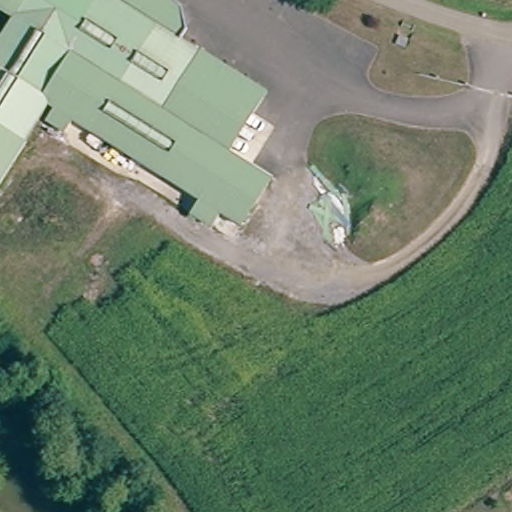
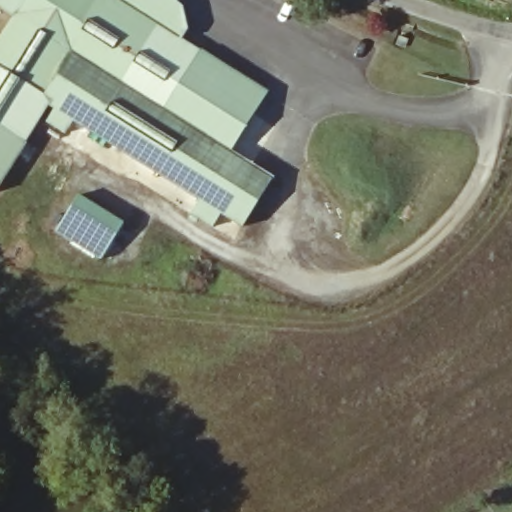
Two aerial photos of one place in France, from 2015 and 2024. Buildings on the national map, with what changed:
unchanged [(0,9),(0,0),(119,0),(166,29),(196,46),(261,84),(226,141),(270,167),(234,227),(189,200),(196,187),(51,103),(0,190),(0,50),(18,20),(0,9)]
unchanged [(166,29),(119,0),(168,0),(173,19),(166,29)]
new [(79,194),(123,223),(99,261),(55,231),(79,194)]

